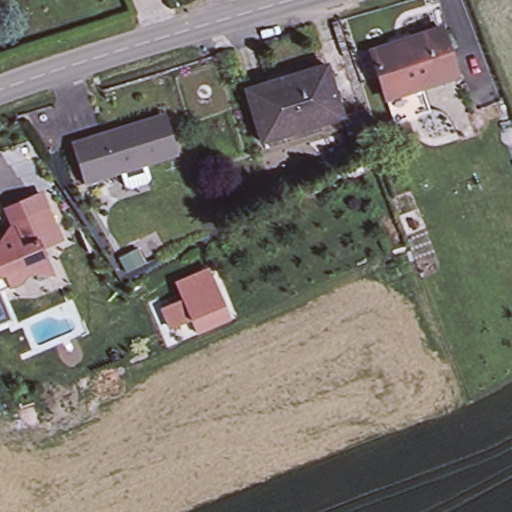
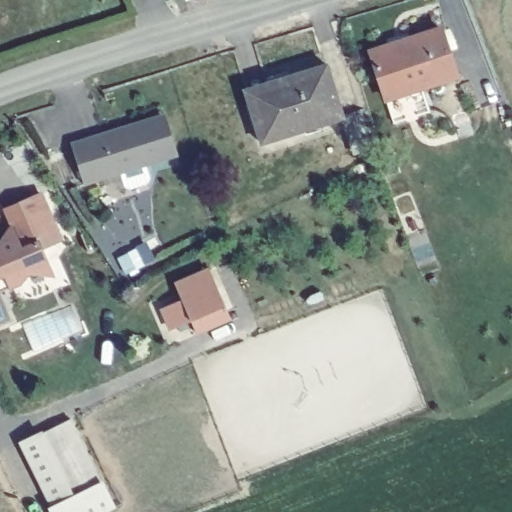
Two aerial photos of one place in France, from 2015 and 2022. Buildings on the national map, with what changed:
unchanged [(396,117),(388,93),(386,87),(372,45),(441,22),(458,70),(423,81),(431,105),(396,117)]
unchanged [(360,113),(370,143),(352,149),(340,112),(261,138),(249,101),(244,87),(274,77),(325,60),(340,111),(357,105),(360,113)]
unchanged [(146,162),(150,176),(147,181),(130,187),(125,184),(120,171),(84,183),(70,142),(135,120),(164,111),(166,117),(177,152),(146,162)]
unchanged [(29,279),(20,289),(0,298),(0,247),(11,232),(5,217),(41,202),(60,247),(40,255),(46,269),(53,283),(29,279)]
unchanged [(137,252),(143,264),(125,273),(119,261),(137,252)]
unchanged [(183,302),(175,285),(209,269),(225,306),(230,321),(196,334),(191,321),(171,331),(161,312),(183,302)]
new [(17,443),(41,432),(71,418),(101,481),(115,507),(106,512),(51,512),(48,507),(17,443)]

